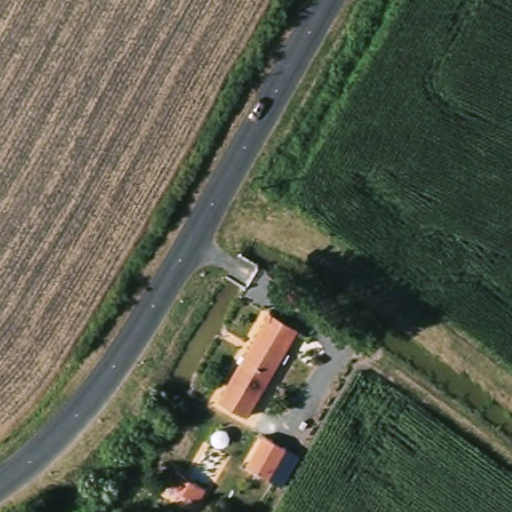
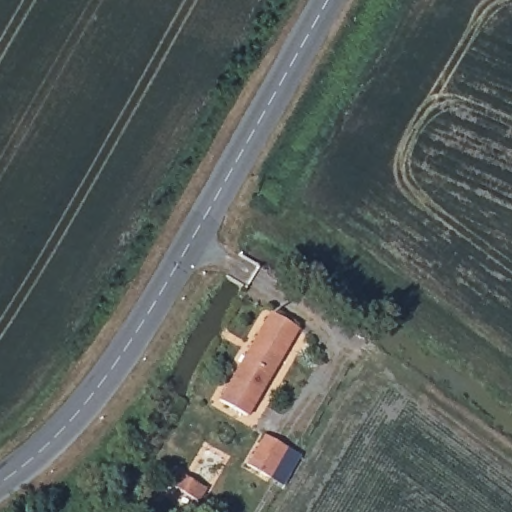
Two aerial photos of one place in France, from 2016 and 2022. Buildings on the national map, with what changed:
unchanged [(270,321),(300,336),(252,429),(221,412),(270,321)]
unchanged [(291,452),(272,486),(249,471),(267,433),(291,452)]
unchanged [(170,479),(201,496),(194,510),(162,493),(170,479)]

